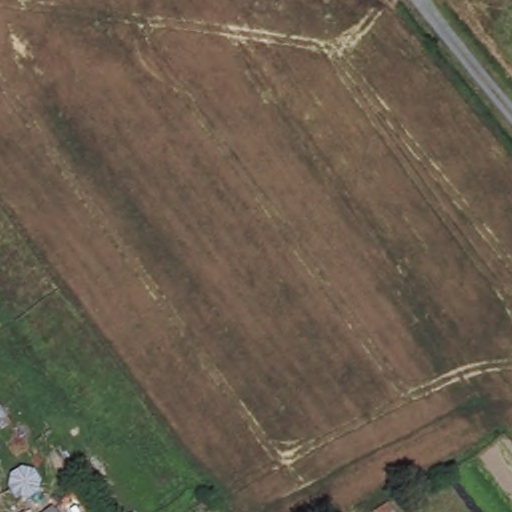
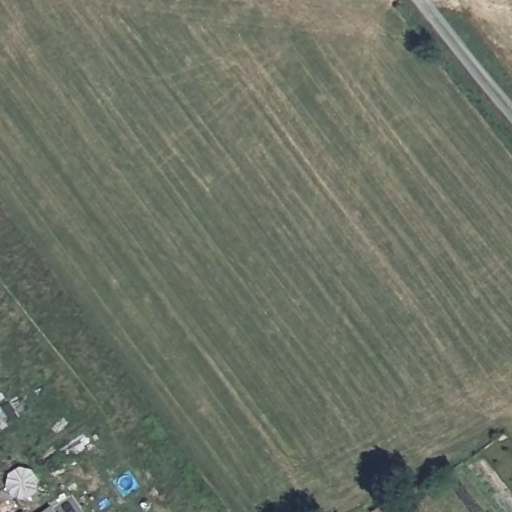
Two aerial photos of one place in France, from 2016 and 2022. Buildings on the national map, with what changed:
unchanged [(384,502),(387,511),(384,512),(370,512),(384,502)]

